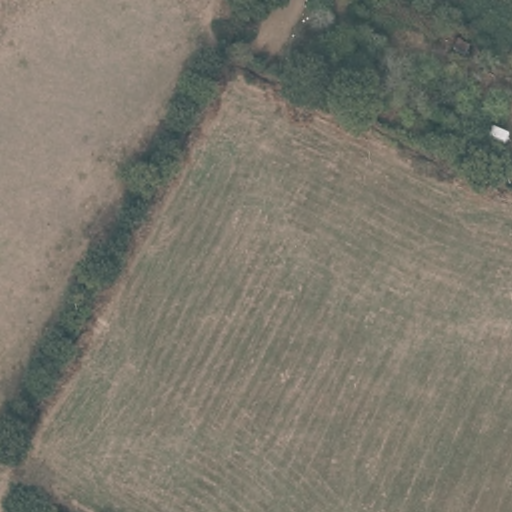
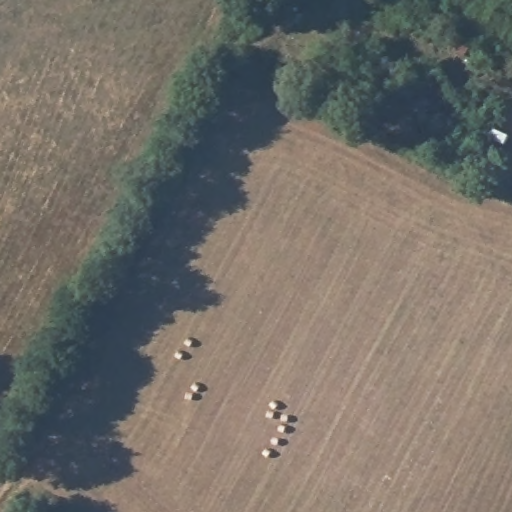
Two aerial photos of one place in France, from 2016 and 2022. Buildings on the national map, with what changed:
[]

